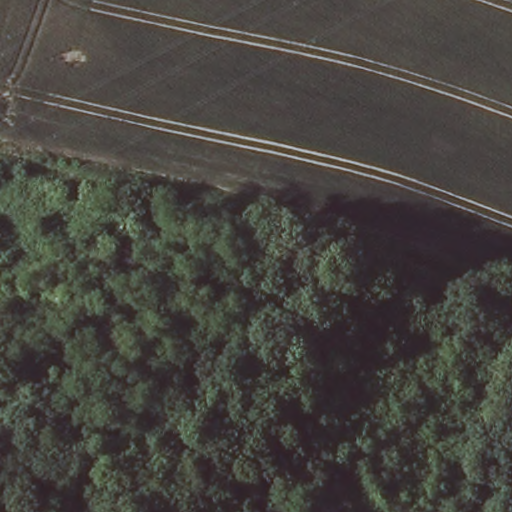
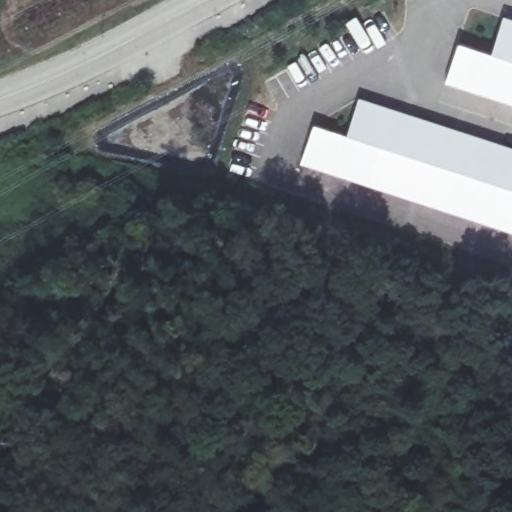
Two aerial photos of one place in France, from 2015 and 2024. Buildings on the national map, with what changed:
new [(458,42),(492,52),(504,16),(512,19),(512,105),(446,83),(458,42)]
new [(314,125),(348,136),(359,98),(512,147),(512,234),(302,164),(314,125)]

